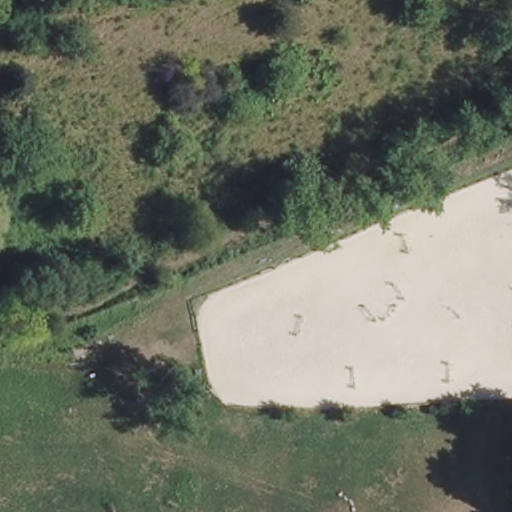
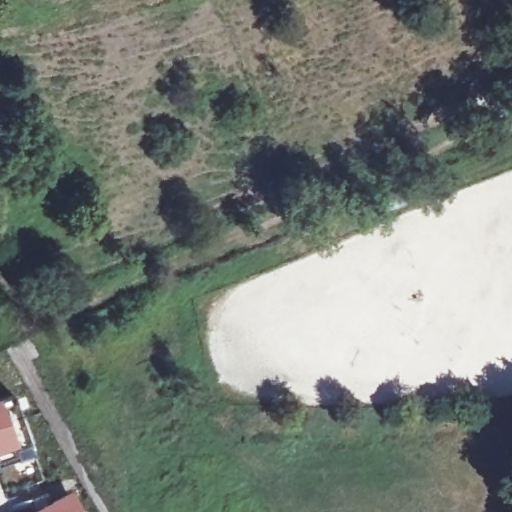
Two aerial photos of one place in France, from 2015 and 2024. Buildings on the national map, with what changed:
new [(14,396),(30,445),(33,454),(19,458),(0,465),(0,400),(14,396)]
new [(72,490),(85,512),(31,512),(72,490)]

